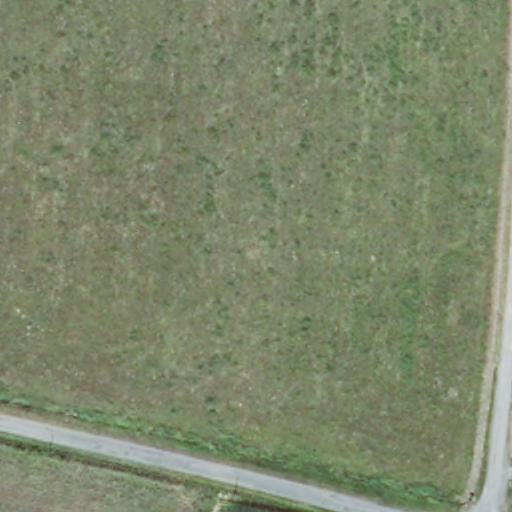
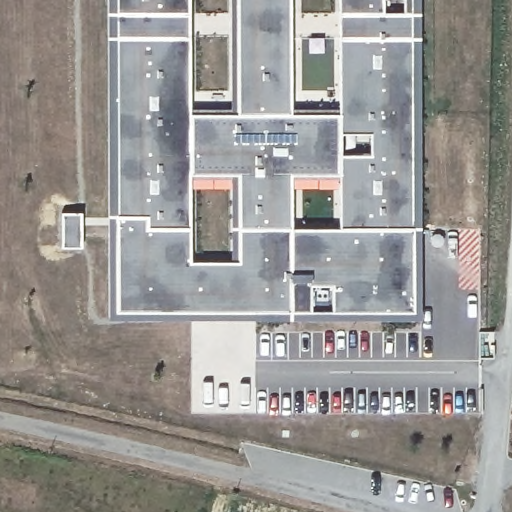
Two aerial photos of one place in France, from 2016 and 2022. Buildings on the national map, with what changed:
new [(346,335),(111,320),(109,0),(191,0),(191,114),(230,112),(230,0),(292,0),(291,113),(340,112),(338,0),(419,0),(420,318),(346,335)]

